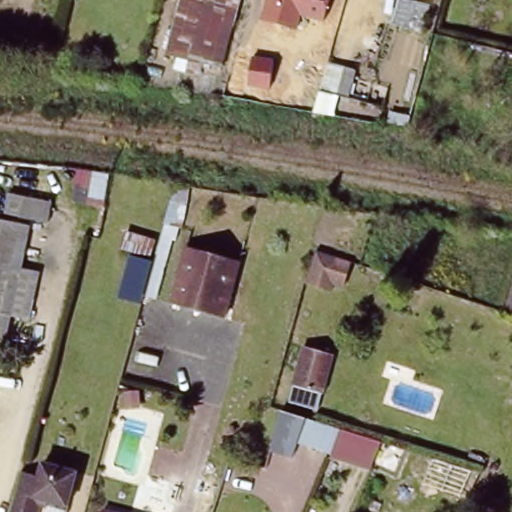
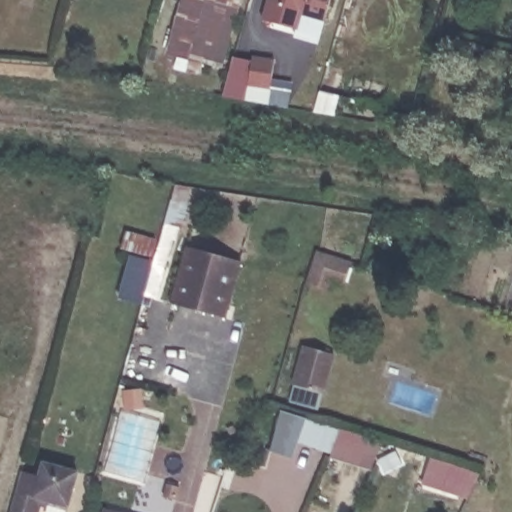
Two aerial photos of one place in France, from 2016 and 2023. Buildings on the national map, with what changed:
unchanged [(163,54),(177,0),(238,0),(220,67),(163,54)]
unchanged [(329,0),(322,22),(300,16),(296,31),(262,21),(268,0),(329,0)]
demolished [(47,222),(29,219),(28,224),(22,249),(0,245),(0,235),(7,207),(11,191),(52,201),(47,222)]
demolished [(0,235),(0,206),(7,207),(0,235)]
unchanged [(118,297),(130,254),(120,251),(125,232),(157,241),(141,304),(118,297)]
unchanged [(191,307),(166,300),(181,250),(183,241),(208,247),(237,255),(234,264),(218,315),(191,307)]
demolished [(17,262),(40,267),(27,317),(3,313),(0,312),(0,245),(22,249),(17,262)]
unchanged [(314,252),(340,259),(350,262),(342,288),(333,286),(331,292),(305,285),(314,252)]
demolished [(0,329),(0,312),(3,313),(0,329)]
unchanged [(333,355),(322,391),(293,382),(305,346),(333,355)]
unchanged [(370,438),(362,467),(330,457),(332,452),(298,442),(293,457),(269,450),(280,411),(370,438)]
new [(431,457),(483,473),(471,497),(423,482),(431,457)]
unchanged [(39,462),(72,471),(63,505),(37,497),(33,512),(6,512),(18,470),(35,475),(39,462)]
unchanged [(97,506),(105,507),(121,512),(96,512),(97,506)]

